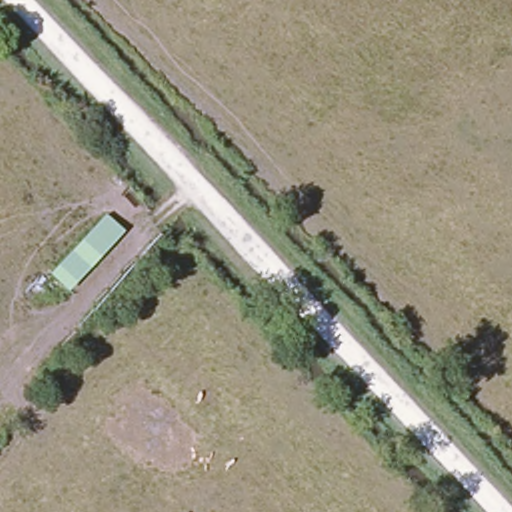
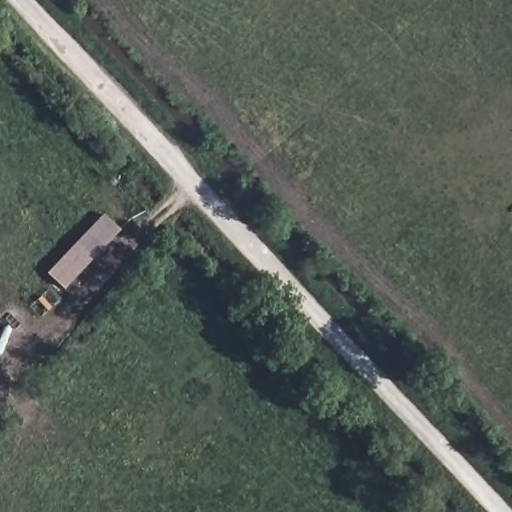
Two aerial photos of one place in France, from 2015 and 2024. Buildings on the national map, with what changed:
unchanged [(60,298),(44,284),(103,221),(119,236),(60,298)]

